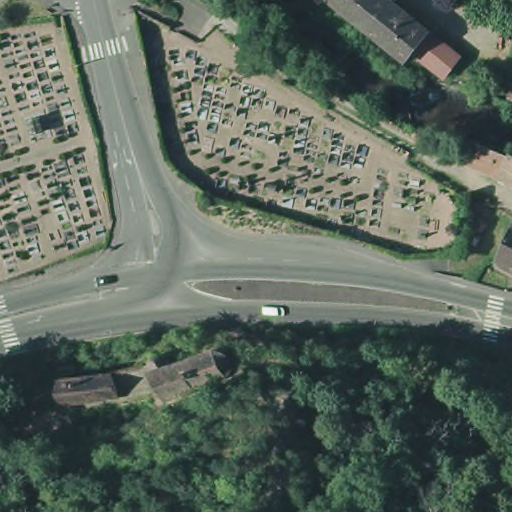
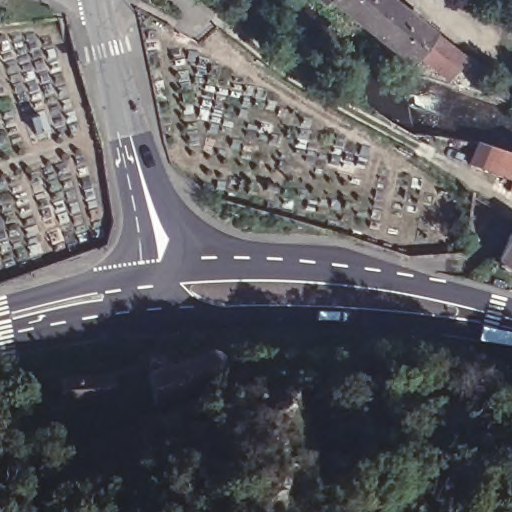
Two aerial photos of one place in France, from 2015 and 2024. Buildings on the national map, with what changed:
unchanged [(334,0),(344,0),(340,5),(334,0)]
unchanged [(345,0),(403,0),(405,1),(380,30),(345,0)]
unchanged [(425,66),(380,30),(405,1),(448,36),(432,56),(425,66)]
unchanged [(432,56),(448,36),(480,62),(463,82),(432,56)]
unchanged [(498,172),(476,163),(485,139),(506,148),(512,150),(512,178),(511,177),(498,172)]
unchanged [(508,261),(505,260),(512,244),(512,268),(506,265),(508,261)]
unchanged [(222,373),(217,378),(185,393),(185,394),(158,405),(145,368),(148,367),(148,361),(150,358),(153,354),(157,352),(165,353),(168,355),(170,358),(173,357),(176,365),(206,354),(212,354),(217,356),(221,359),(223,363),(223,368),(222,373)]
unchanged [(115,399),(62,407),(60,385),(113,377),(115,399)]

